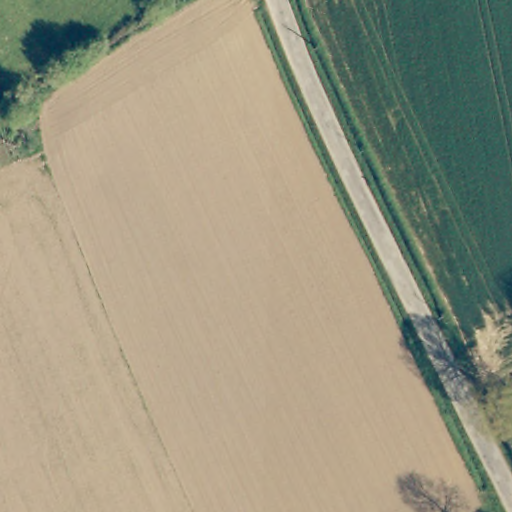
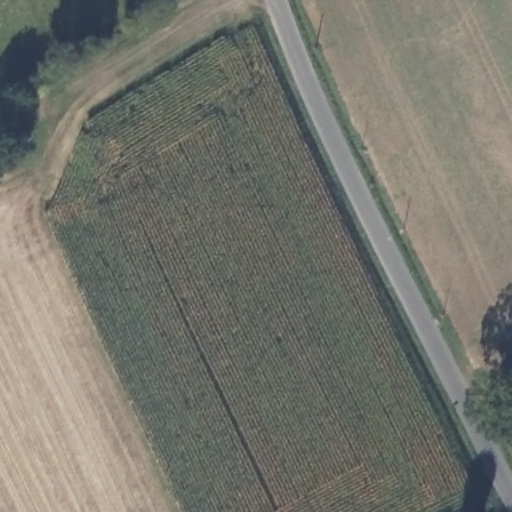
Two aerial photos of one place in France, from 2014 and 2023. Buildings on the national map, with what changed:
[]

